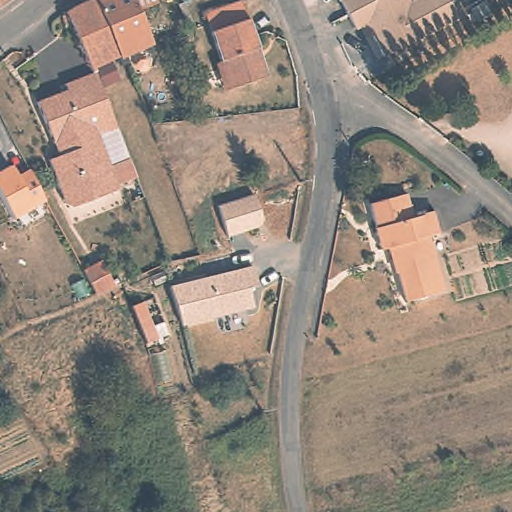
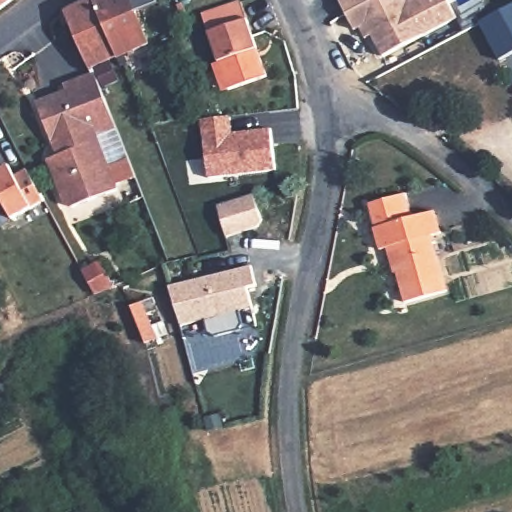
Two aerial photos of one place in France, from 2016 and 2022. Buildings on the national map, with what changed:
unchanged [(0,5),(0,0),(6,0),(0,5)]
unchanged [(70,13),(71,9),(70,5),(68,3),(73,0),(91,0),(93,2),(118,57),(93,68),(65,14),(70,13)]
unchanged [(147,45),(118,57),(93,2),(97,0),(129,0),(147,45)]
unchanged [(458,22),(384,59),(372,36),(366,41),(360,30),(353,31),(338,0),(446,0),(458,22)]
new [(512,4),(512,49),(497,58),(480,22),(512,4)]
unchanged [(261,63),(225,78),(202,23),(238,8),(261,63)]
unchanged [(135,177),(116,184),(119,190),(100,198),(68,128),(51,135),(38,100),(95,74),(117,129),(99,137),(110,166),(128,159),(135,177)]
demolished [(173,95),(169,82),(184,78),(188,91),(173,95)]
new [(231,116),(233,133),(272,129),(276,170),(209,178),(202,120),(231,116)]
demolished [(9,143),(10,148),(0,153),(0,127),(1,127),(9,143)]
unchanged [(74,208),(64,206),(46,159),(63,153),(51,135),(68,128),(100,198),(74,208)]
demolished [(151,139),(156,152),(144,155),(140,142),(151,139)]
unchanged [(0,194),(0,170),(10,165),(15,175),(27,169),(44,202),(15,217),(0,194)]
unchanged [(263,223),(259,229),(227,238),(218,206),(255,194),(263,223)]
unchanged [(433,233),(389,246),(379,249),(366,204),(402,194),(409,218),(437,209),(445,230),(433,233)]
unchanged [(389,246),(433,233),(446,282),(448,292),(404,303),(402,295),(389,246)]
unchanged [(111,284),(91,293),(80,270),(98,261),(111,284)]
unchanged [(252,266),(258,289),(251,291),(255,309),(178,328),(168,286),(252,266)]
demolished [(128,311),(126,304),(138,300),(150,335),(137,339),(128,311)]
new [(137,313),(135,306),(146,302),(159,338),(146,342),(137,313)]

